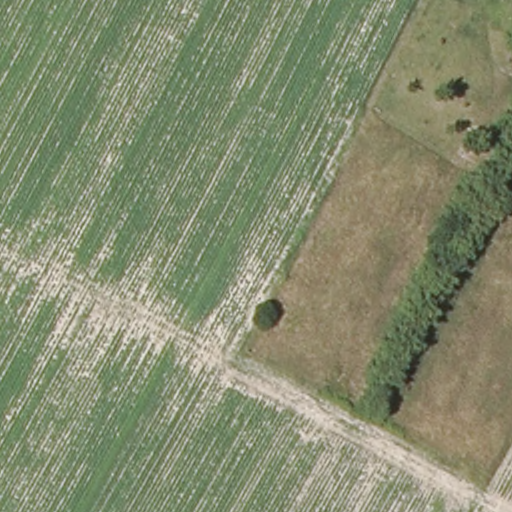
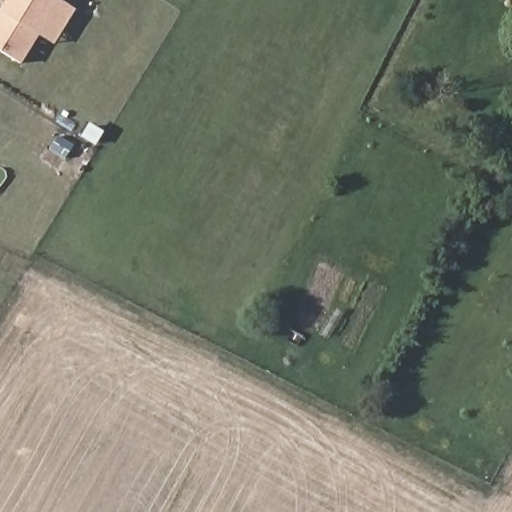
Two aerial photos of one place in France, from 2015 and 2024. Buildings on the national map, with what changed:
new [(37,31),(19,61),(0,49),(0,10),(6,0),(63,0),(73,6),(52,41),(37,31)]

